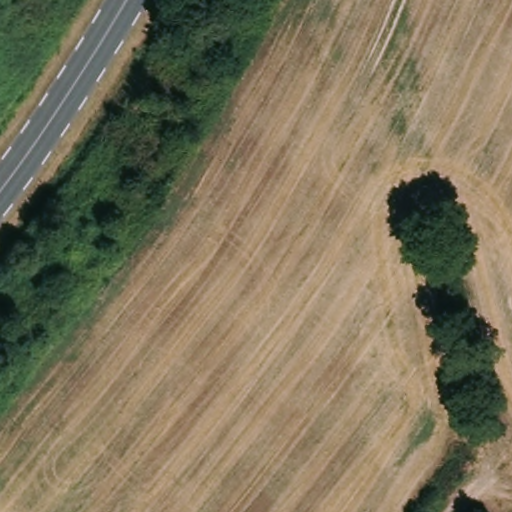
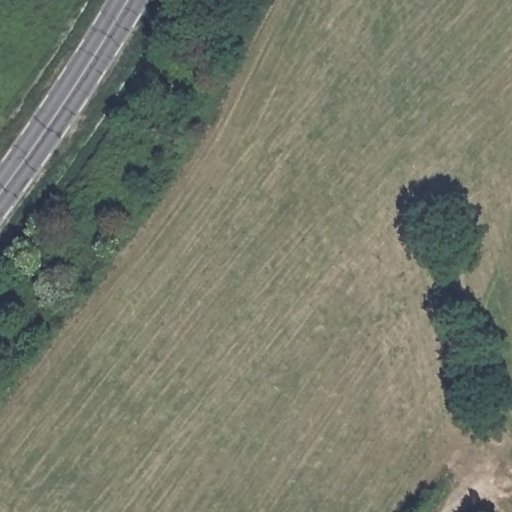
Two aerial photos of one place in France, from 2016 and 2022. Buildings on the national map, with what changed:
[]

